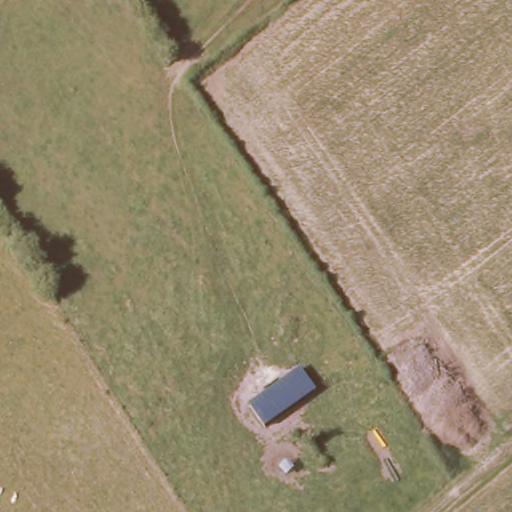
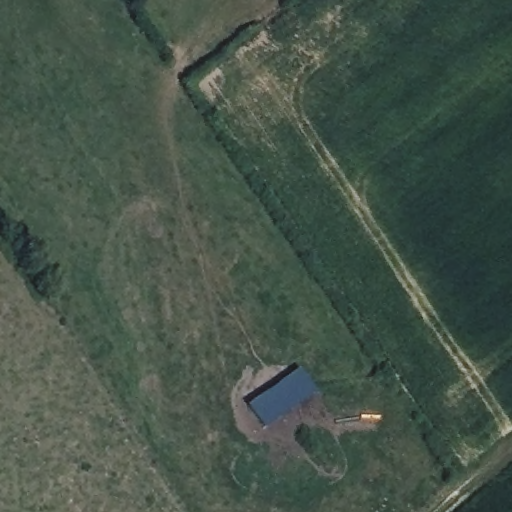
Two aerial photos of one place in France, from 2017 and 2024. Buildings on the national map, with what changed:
unchanged [(299,371),(316,395),(264,430),(247,408),(299,371)]

